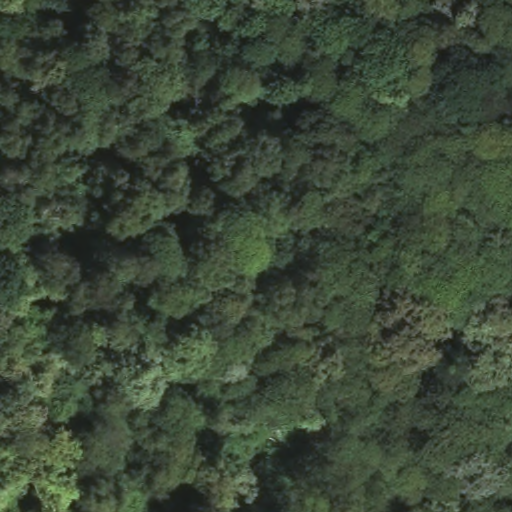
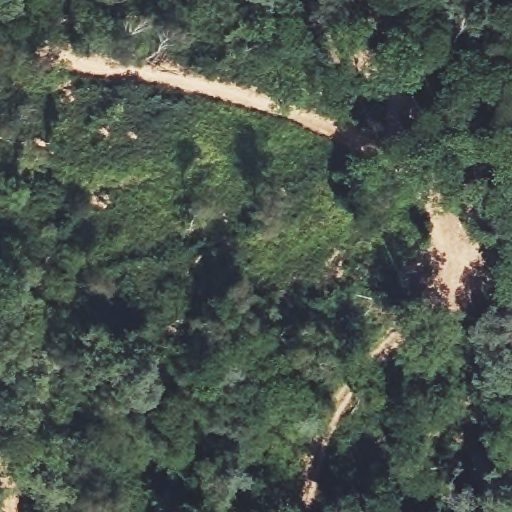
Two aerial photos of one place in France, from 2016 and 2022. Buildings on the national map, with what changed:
[]

